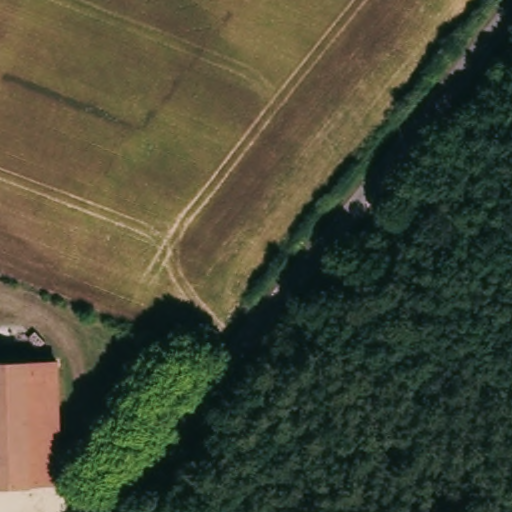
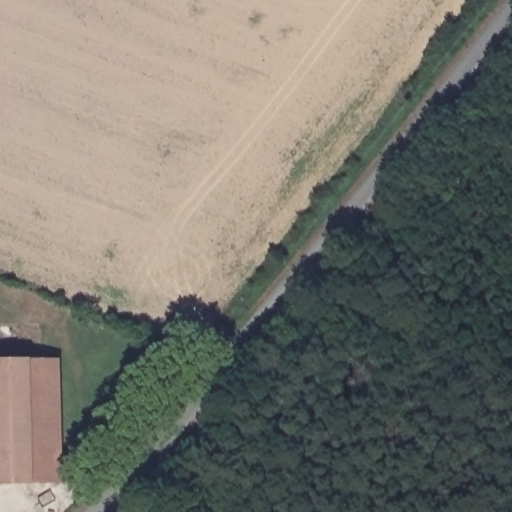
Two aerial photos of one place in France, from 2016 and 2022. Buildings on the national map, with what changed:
unchanged [(57,480),(0,482),(0,363),(53,361),(57,480)]

